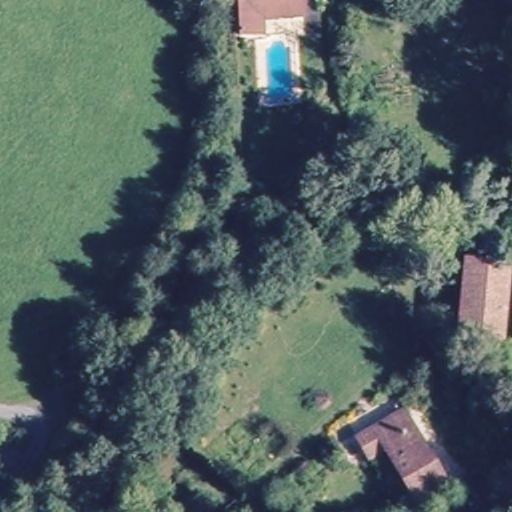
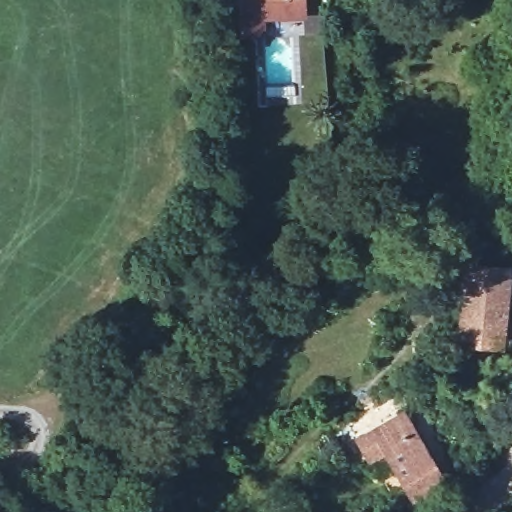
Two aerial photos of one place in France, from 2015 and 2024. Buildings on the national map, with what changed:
unchanged [(244,38),(243,23),(242,0),(291,0),(291,1),(305,0),(306,19),(265,22),(266,36),(244,38)]
unchanged [(504,268),(502,344),(463,344),(465,268),(504,268)]
unchanged [(404,412),(443,482),(413,498),(385,448),(368,457),(357,438),(404,412)]

